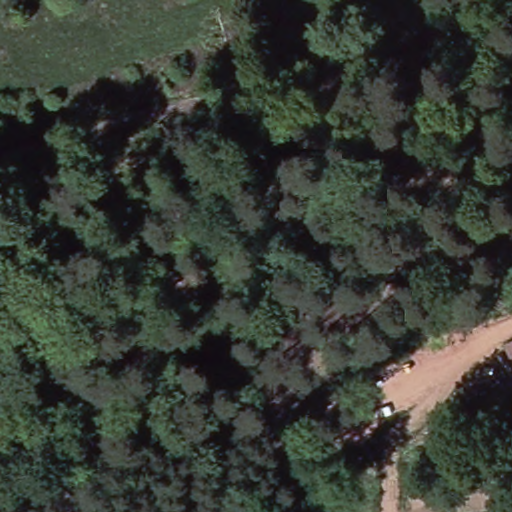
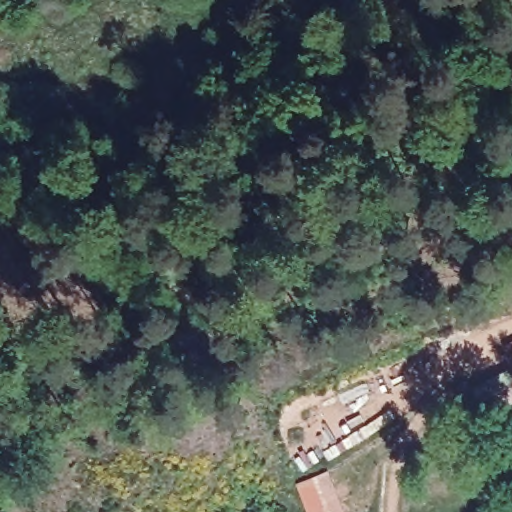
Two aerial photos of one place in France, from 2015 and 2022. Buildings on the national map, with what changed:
new [(295,482),(327,469),(345,512),(308,512),(295,482)]

